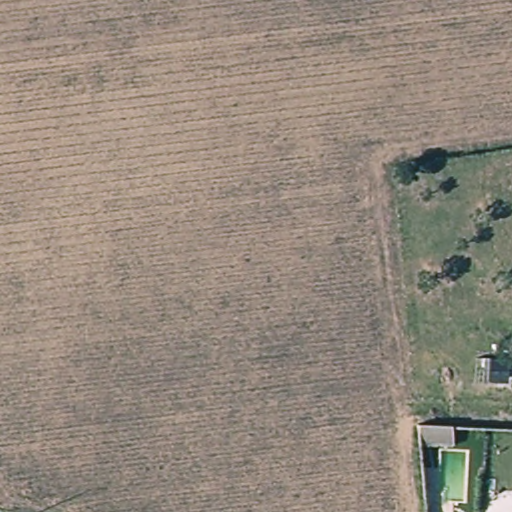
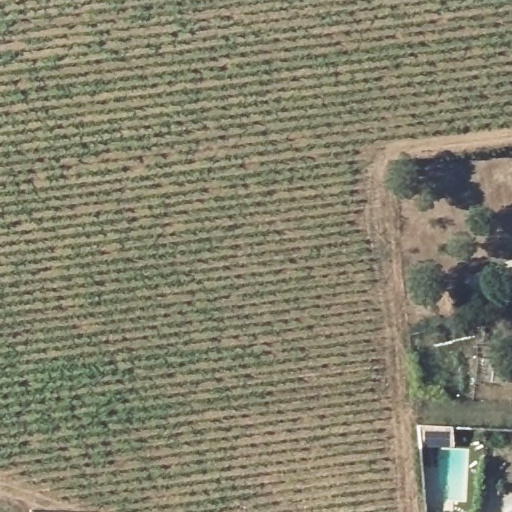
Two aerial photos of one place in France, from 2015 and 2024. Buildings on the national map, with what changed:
unchanged [(438,426),(452,427),(452,448),(420,447),(418,426),(438,426)]

